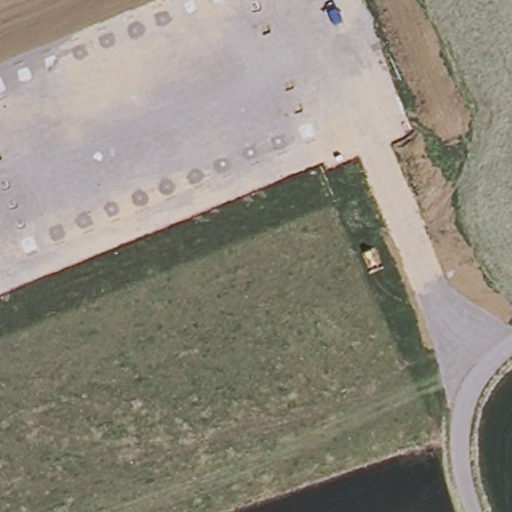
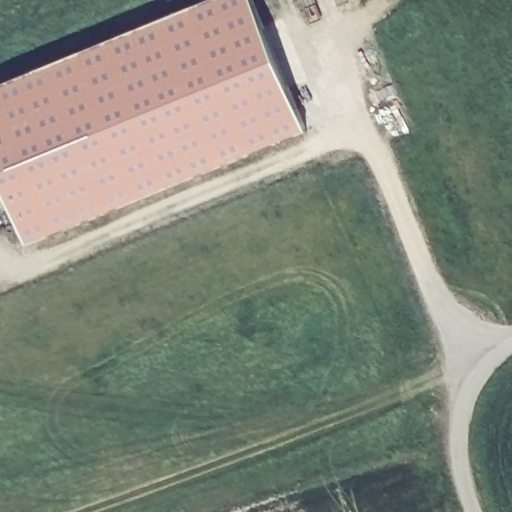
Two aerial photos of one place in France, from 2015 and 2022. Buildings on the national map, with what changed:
new [(305,130),(28,244),(0,176),(0,83),(206,0),(255,0),(305,130)]

